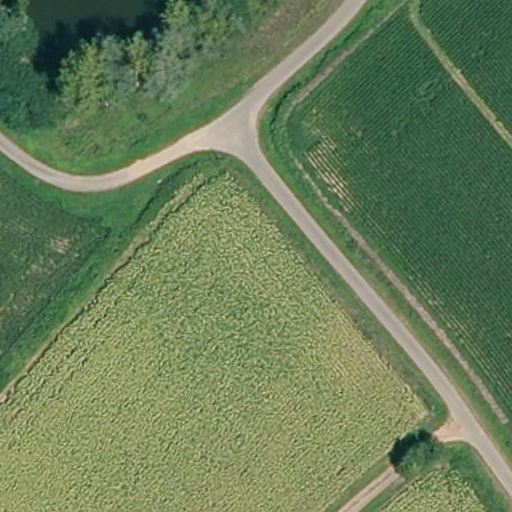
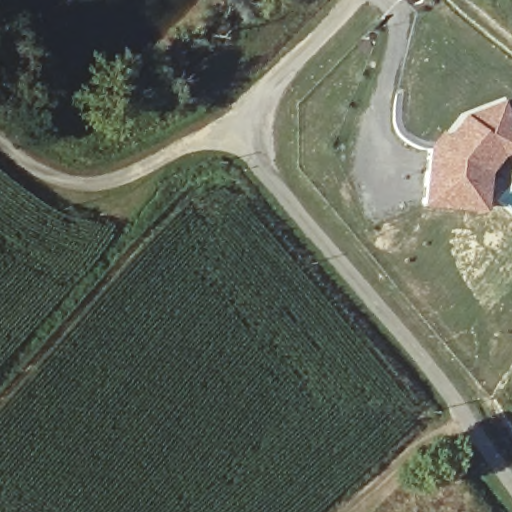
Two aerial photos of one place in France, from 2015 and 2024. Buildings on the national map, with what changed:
new [(446,136),(463,115),(505,101),(512,120),(512,154),(505,156),(491,175),(487,214),(421,207),(427,145),(440,132),(446,136)]

